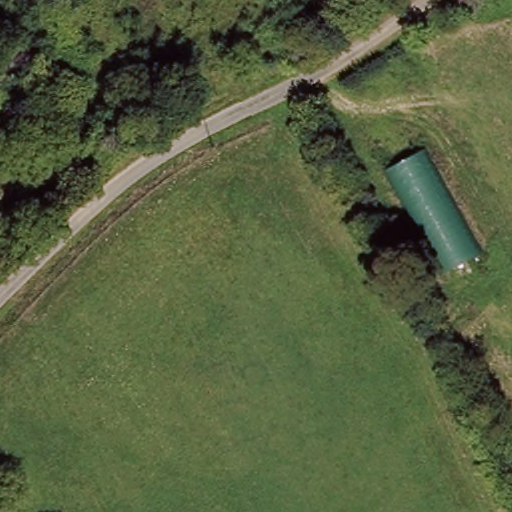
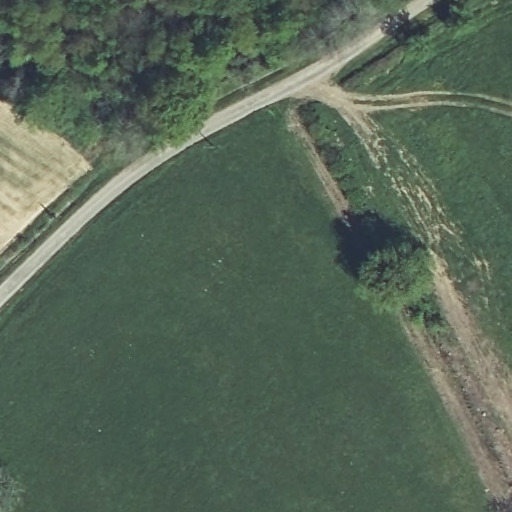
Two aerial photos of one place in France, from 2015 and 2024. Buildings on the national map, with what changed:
demolished [(382,169),(422,152),(476,255),(441,276),(382,169)]

